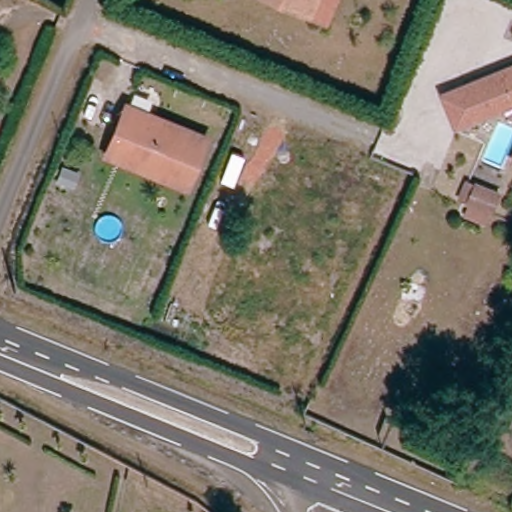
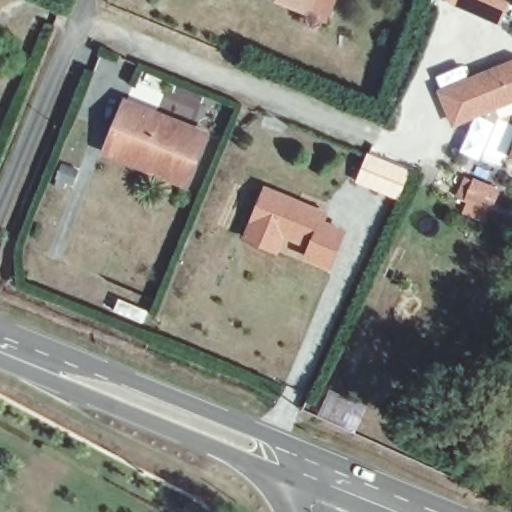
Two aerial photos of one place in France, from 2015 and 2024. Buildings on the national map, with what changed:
unchanged [(276,0),(309,0),(303,12),(276,0)]
unchanged [(309,0),(335,0),(326,22),(303,12),(309,0)]
new [(446,2),(447,0),(511,0),(499,24),(485,18),(446,2)]
unchanged [(512,69),(512,108),(509,106),(452,128),(436,95),(512,69)]
unchanged [(129,108),(207,139),(188,184),(112,153),(129,108)]
new [(408,169),(397,198),(355,182),(367,152),(408,169)]
unchanged [(510,165),(512,162),(512,166),(510,165)]
unchanged [(470,181),(491,192),(481,211),(461,202),(470,181)]
new [(300,255),(304,245),(283,235),(277,251),(243,238),(264,185),(329,211),(325,220),(347,228),(331,268),(300,255)]

